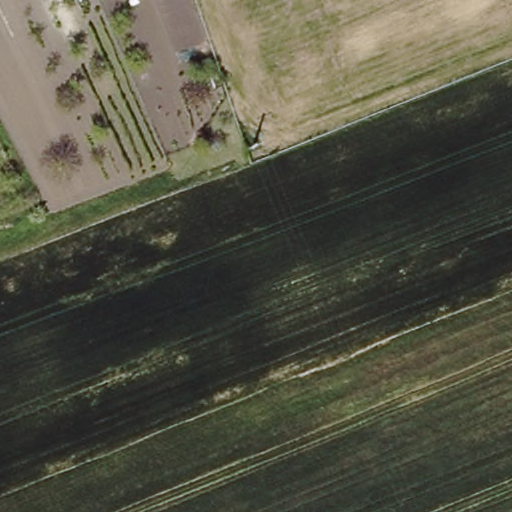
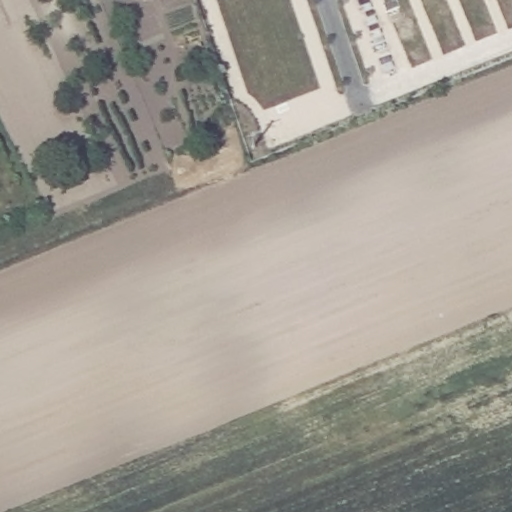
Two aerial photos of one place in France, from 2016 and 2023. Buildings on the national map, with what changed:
unchanged [(85,8),(73,12),(68,0),(81,0),(85,8)]

